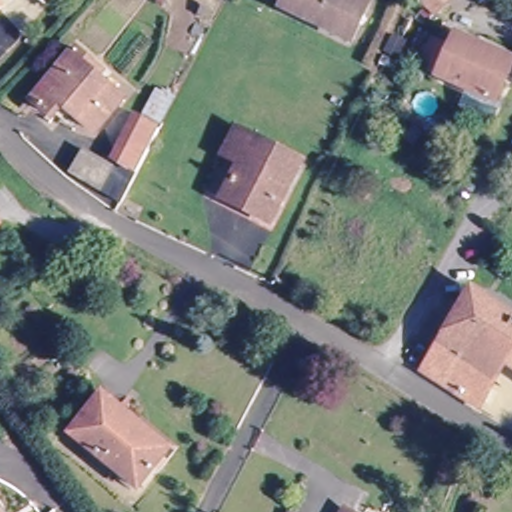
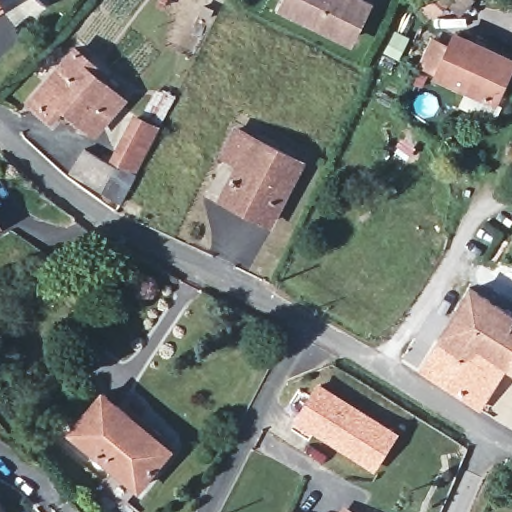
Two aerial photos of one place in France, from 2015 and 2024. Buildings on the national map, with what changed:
unchanged [(284,0),(357,0),(360,2),(340,37),(282,4),(284,0)]
unchanged [(431,0),(457,0),(446,12),(431,0)]
unchanged [(0,7),(0,4),(1,6),(0,7)]
unchanged [(421,77),(431,47),(451,54),(458,33),(512,51),(512,67),(499,104),(421,77)]
unchanged [(76,51),(94,67),(90,72),(123,99),(93,132),(61,102),(40,125),(24,109),(76,51)]
unchanged [(109,160),(131,115),(159,129),(134,172),(109,160)]
unchanged [(270,222),(223,197),(240,165),(221,156),(233,131),(298,164),(270,222)]
unchanged [(0,230),(0,223),(3,229),(0,230)]
unchanged [(500,365),(477,405),(421,371),(467,287),(512,312),(512,372),(500,365)]
new [(401,431),(375,472),(294,419),(320,381),(401,431)]
unchanged [(68,430),(99,391),(165,444),(133,485),(68,430)]
unchanged [(345,507),(352,512),(342,512),(345,507)]

